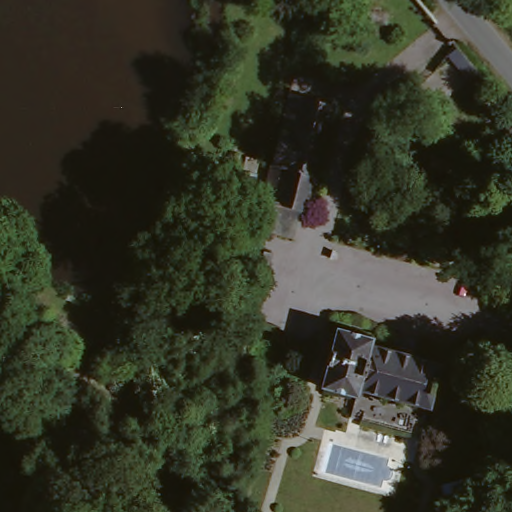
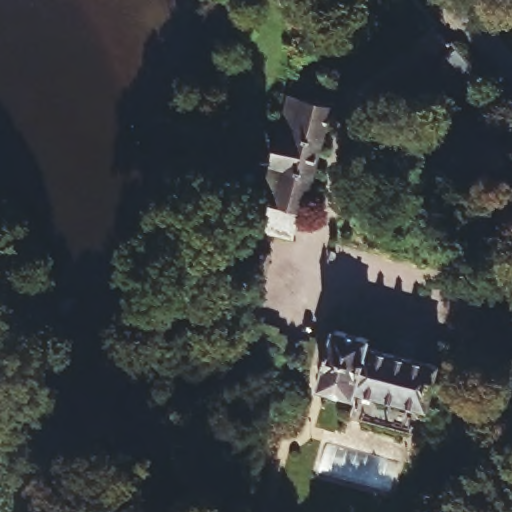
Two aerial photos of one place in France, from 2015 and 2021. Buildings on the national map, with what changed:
unchanged [(264,207),(299,91),(338,102),(310,218),(264,207)]
unchanged [(451,168),(448,186),(421,176),(427,157),(429,159),(451,168)]
unchanged [(223,166),(241,174),(232,195),(214,190),(220,175),(223,166)]
unchanged [(233,271),(237,255),(254,258),(250,275),(233,271)]
unchanged [(397,396),(366,386),(362,396),(325,381),(343,319),(383,332),(381,341),(447,364),(433,407),(397,396)]

